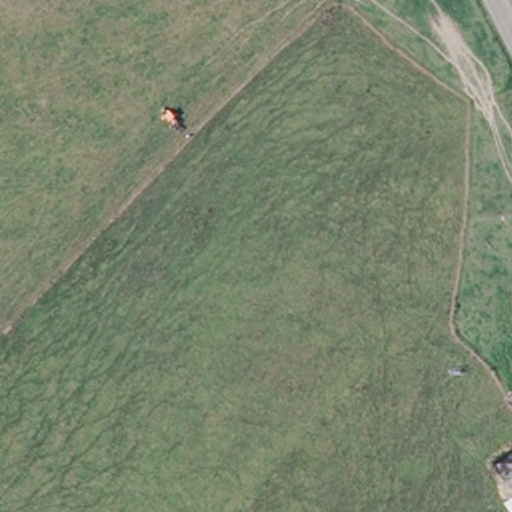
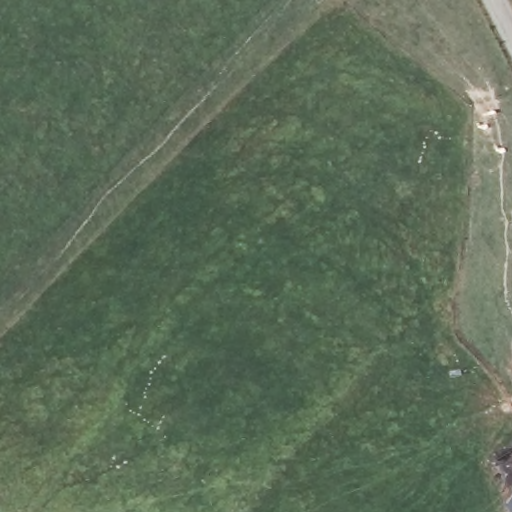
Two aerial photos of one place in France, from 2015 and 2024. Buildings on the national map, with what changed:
unchanged [(506,504),(512,500),(512,512),(511,512),(506,504)]

